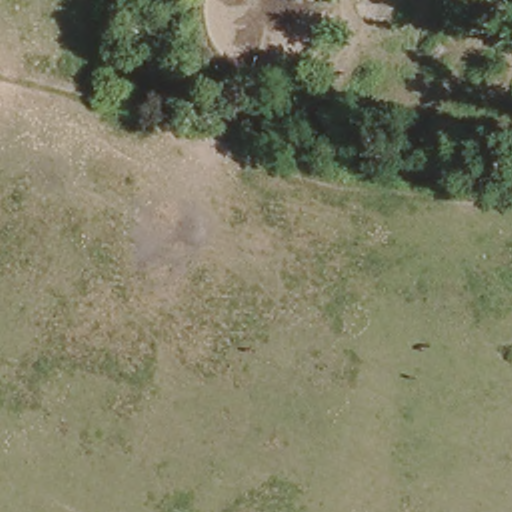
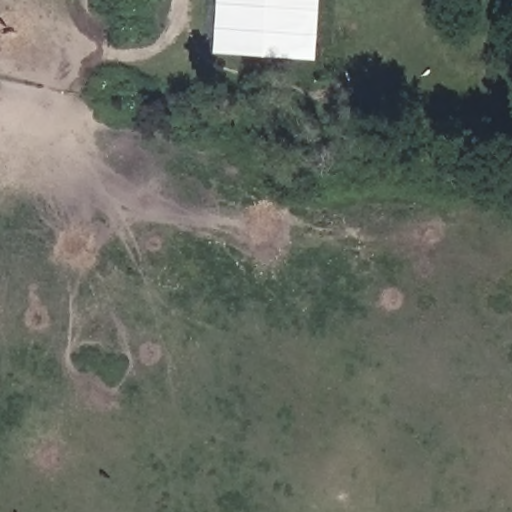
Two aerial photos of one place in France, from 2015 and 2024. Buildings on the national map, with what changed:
new [(317,59),(215,52),(218,0),(321,0),(317,59)]

